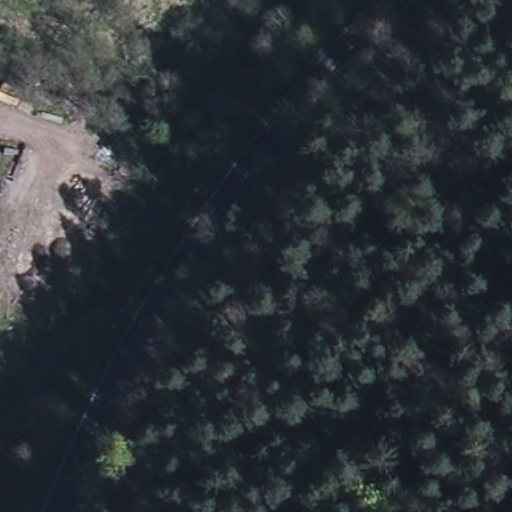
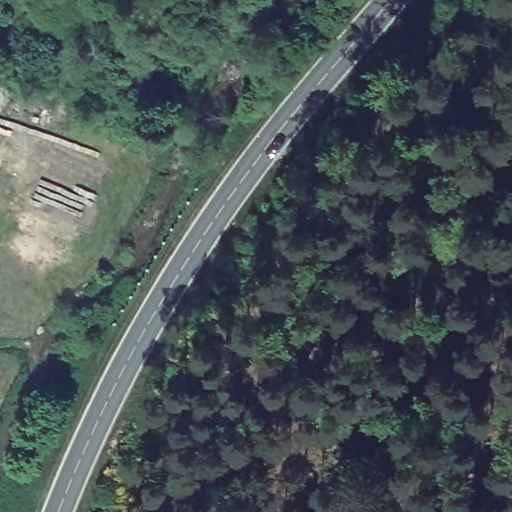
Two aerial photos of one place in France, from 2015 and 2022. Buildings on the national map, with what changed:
[]

